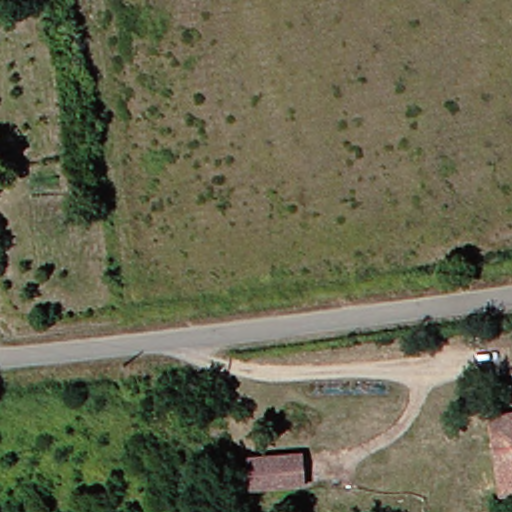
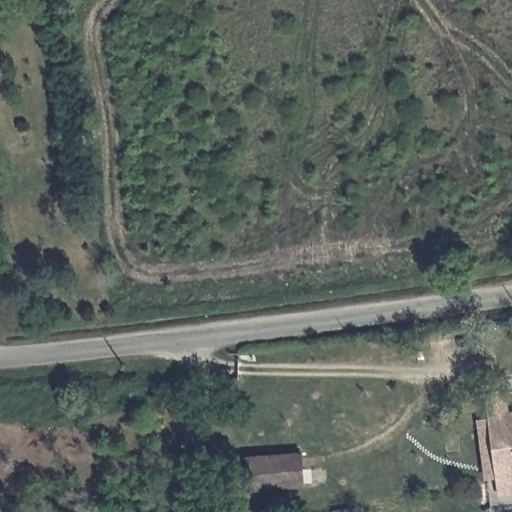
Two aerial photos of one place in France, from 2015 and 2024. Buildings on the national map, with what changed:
unchanged [(495,496),(482,413),(512,408),(512,492),(495,496)]
unchanged [(252,494),(246,455),(297,448),(301,488),(252,494)]

